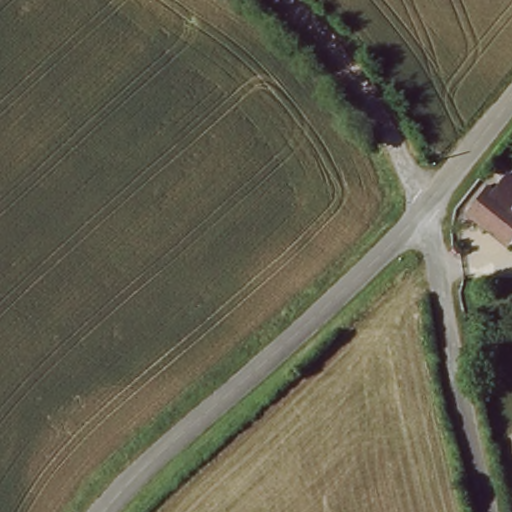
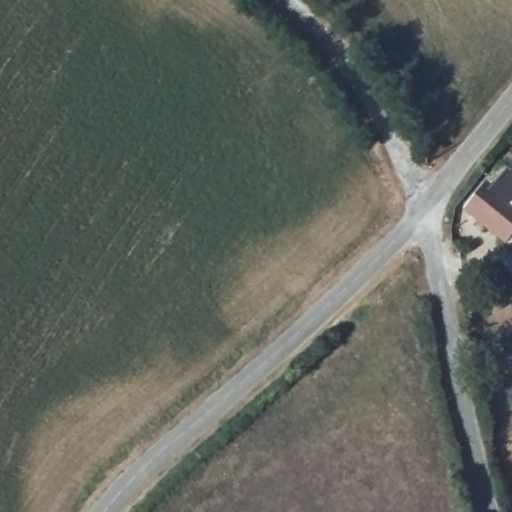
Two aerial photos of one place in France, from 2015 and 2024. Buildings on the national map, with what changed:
unchanged [(512,175),(512,227),(505,236),(470,206),(489,181),(497,189),(510,173),(512,175)]

